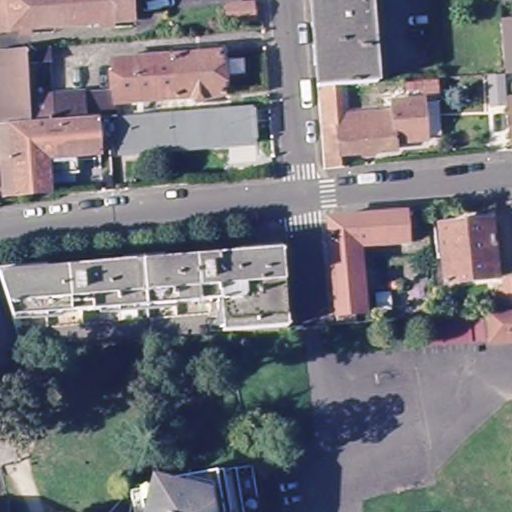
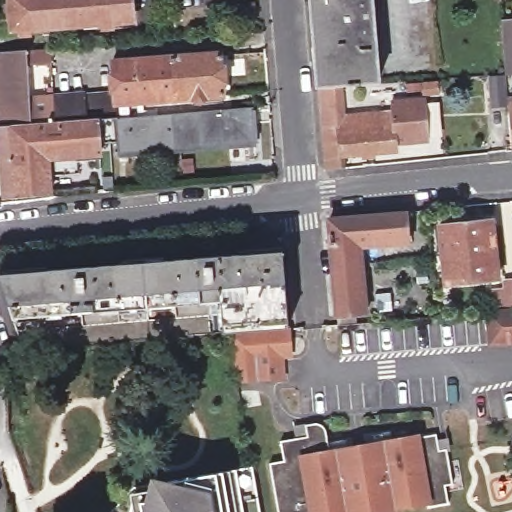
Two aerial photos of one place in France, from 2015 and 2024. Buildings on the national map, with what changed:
unchanged [(0,0),(12,0),(14,22),(0,24),(0,0)]
unchanged [(128,0),(130,20),(108,22),(106,16),(14,22),(12,0),(128,0)]
unchanged [(310,0),(370,0),(377,84),(339,86),(317,87),(310,0)]
unchanged [(254,20),(227,24),(225,6),(253,4),(254,20)]
unchanged [(512,20),(512,76),(505,76),(501,24),(500,20),(512,20)]
unchanged [(0,52),(48,47),(49,61),(28,63),(31,99),(113,91),(111,62),(218,52),(222,95),(115,107),(116,117),(0,126),(0,52)]
unchanged [(435,91),(420,92),(420,82),(434,81),(435,91)]
unchanged [(361,159),(360,154),(339,156),(340,168),(323,170),(320,132),(317,87),(339,86),(342,117),(391,113),(390,100),(421,97),(425,138),(394,141),(394,150),(373,152),(373,157),(361,159)]
unchanged [(509,99),(512,99),(512,138),(509,99)]
unchanged [(48,171),(50,189),(5,195),(0,139),(0,126),(116,117),(117,120),(251,110),(254,144),(120,154),(101,156),(79,159),(79,168),(48,171)]
unchanged [(335,322),(334,314),(327,220),(404,214),(404,210),(418,209),(419,229),(420,239),(413,240),(360,243),(365,312),(352,313),(352,321),(335,322)]
unchanged [(502,277),(450,281),(448,250),(441,251),(439,226),(497,220),(502,277)]
unchanged [(115,268),(290,248),(295,327),(291,327),(238,332),(231,332),(34,350),(16,351),(11,323),(5,281),(115,268)]
unchanged [(508,291),(508,280),(512,280),(512,308),(497,310),(496,292),(508,291)]
unchanged [(493,345),(492,312),(512,311),(512,343),(493,345)]
demolished [(474,323),(486,322),(487,340),(475,341),(474,323)]
new [(238,332),(291,327),(293,357),(283,358),(285,380),(236,383),(231,332),(238,332)]
unchanged [(29,353),(30,371),(17,372),(16,354),(29,353)]
new [(305,424),(305,427),(309,427),(318,425),(320,425),(323,428),(325,431),(328,451),(419,433),(420,439),(433,436),(435,440),(448,438),(451,451),(446,452),(452,484),(443,486),(446,504),(393,511),(393,512),(278,512),(269,464),(284,461),(280,441),(295,440),(293,425),(305,424)]
unchanged [(251,472),(257,512),(128,512),(128,492),(251,472)]

